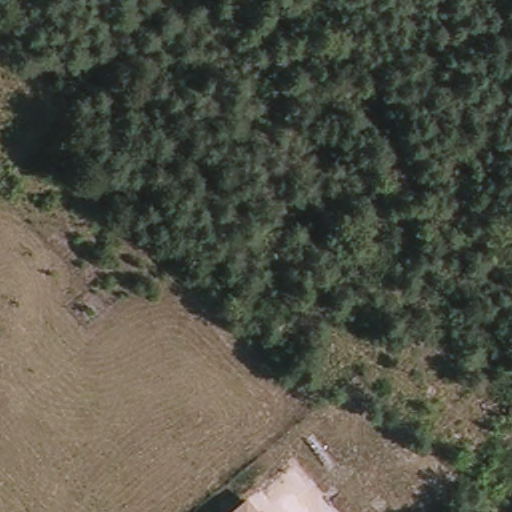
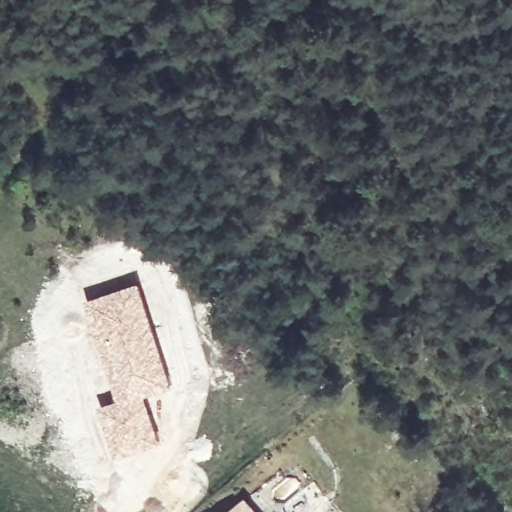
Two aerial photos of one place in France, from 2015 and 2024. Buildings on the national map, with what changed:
new [(139,282),(172,390),(149,398),(162,444),(117,458),(101,405),(119,399),(87,299),(139,282)]
unchanged [(260,512),(231,512),(249,497),(260,512)]

